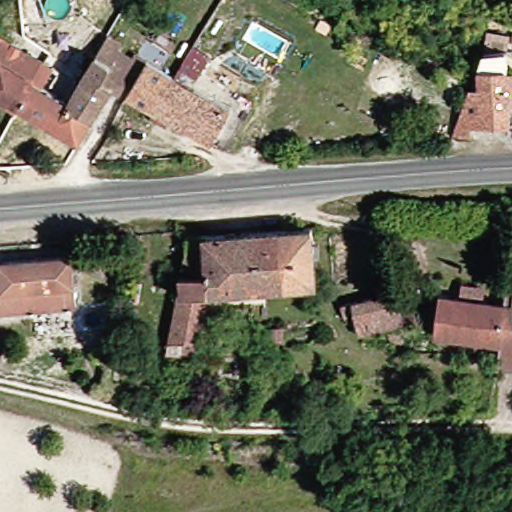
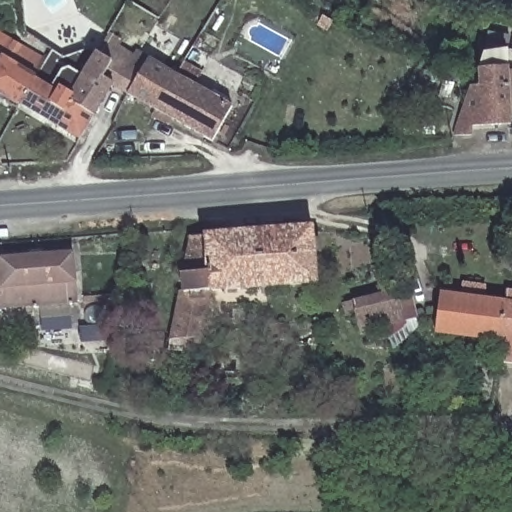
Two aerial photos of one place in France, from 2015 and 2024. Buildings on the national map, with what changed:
unchanged [(10,112),(0,106),(0,43),(37,62),(10,112)]
unchanged [(496,127),(468,127),(462,137),(443,133),(456,92),(463,92),(461,82),(468,51),(493,52),(496,127)]
unchanged [(55,112),(73,82),(86,59),(97,66),(106,52),(124,63),(127,58),(139,65),(120,99),(104,90),(82,126),(55,112)]
unchanged [(55,112),(82,126),(71,144),(10,112),(37,62),(73,82),(55,112)]
unchanged [(145,113),(120,99),(139,65),(164,79),(145,113)]
unchanged [(202,146),(145,113),(164,79),(221,111),(202,146)]
unchanged [(239,234),(307,229),(308,286),(244,290),(239,234)]
unchanged [(185,347),(175,346),(171,352),(162,351),(170,298),(175,299),(180,238),(239,234),(244,290),(206,293),(194,352),(184,352),(185,347)]
unchanged [(73,302),(0,309),(0,256),(67,249),(73,302)]
unchanged [(458,296),(456,282),(479,284),(483,301),(511,304),(512,301),(512,366),(492,363),(495,343),(433,336),(438,296),(458,296)]
unchanged [(350,335),(347,319),(338,321),(338,315),(337,306),(391,291),(397,327),(350,335)]

